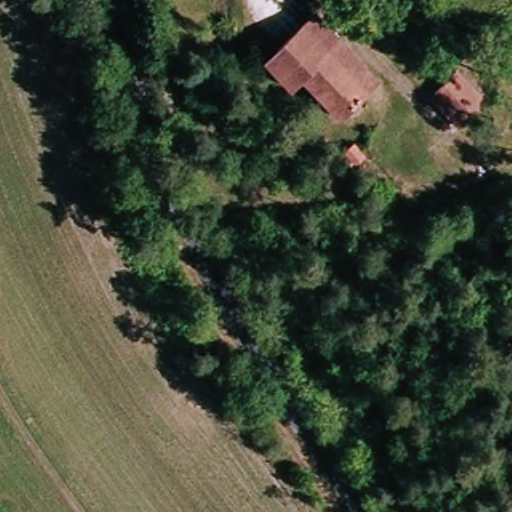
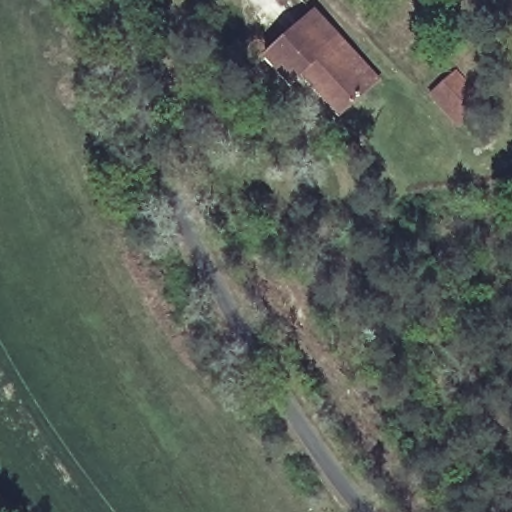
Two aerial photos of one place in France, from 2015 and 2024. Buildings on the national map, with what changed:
unchanged [(323,10),(389,78),(378,88),(312,21),(323,10)]
unchanged [(378,88),(350,116),(325,90),(316,98),(276,56),(312,21),(378,88)]
unchanged [(493,99),(468,124),(439,94),(462,69),(493,99)]

